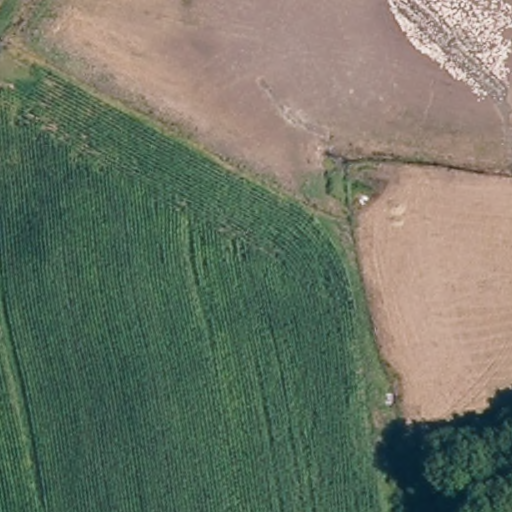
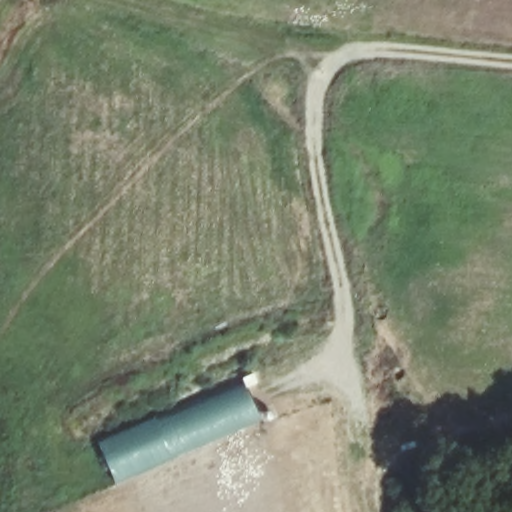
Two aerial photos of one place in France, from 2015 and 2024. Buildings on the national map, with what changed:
new [(245,384),(262,419),(117,483),(99,443),(245,384)]

